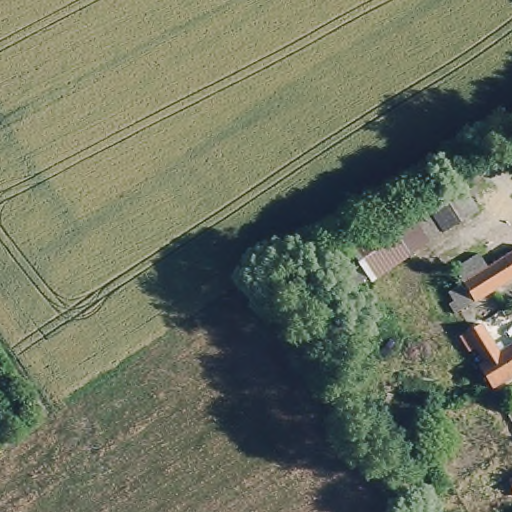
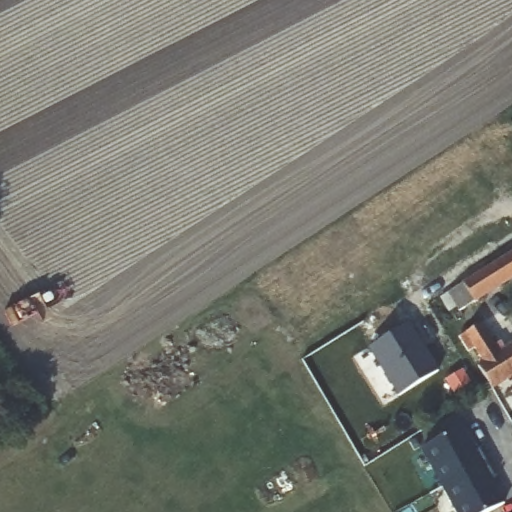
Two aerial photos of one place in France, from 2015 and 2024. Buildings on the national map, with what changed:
unchanged [(439,200),(432,187),(465,166),(486,202),(447,226),(433,204),(439,200)]
unchanged [(447,226),(419,244),(393,206),(413,194),(423,210),(433,204),(447,226)]
unchanged [(419,244),(379,268),(375,265),(362,273),(340,239),(393,206),(419,244)]
unchanged [(459,286),(450,272),(477,255),(487,267),(512,252),(512,281),(460,313),(447,296),(447,295),(452,290),(459,286)]
new [(437,370),(397,396),(368,349),(408,325),(437,370)]
unchanged [(492,391),(477,370),(481,366),(463,337),(478,327),(491,347),(498,343),(503,352),(512,347),(512,379),(492,391)]
new [(427,450),(466,428),(480,452),(484,450),(492,464),(448,488),(427,450)]
new [(500,478),(495,481),(508,505),(496,512),(461,512),(448,488),(492,464),(500,478)]

